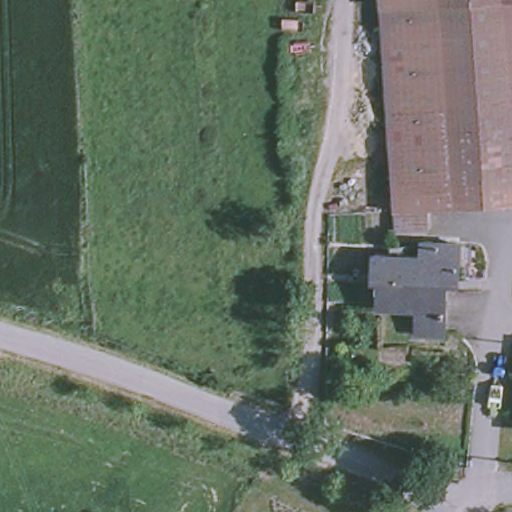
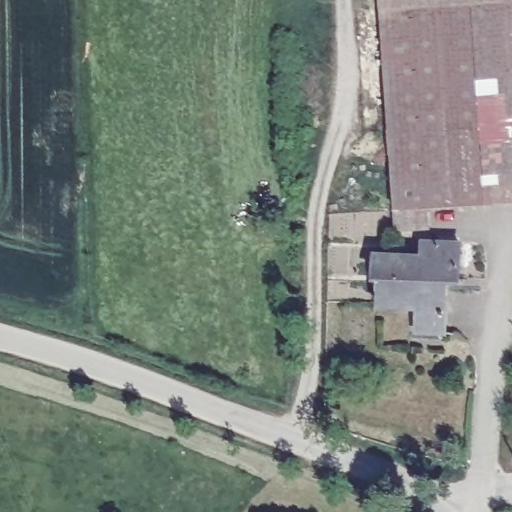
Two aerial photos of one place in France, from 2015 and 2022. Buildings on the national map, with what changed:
unchanged [(381,0),(462,0),(381,6),(381,0)]
unchanged [(396,209),(381,6),(462,0),(512,0),(512,201),(428,207),(430,228),(397,230),(396,209)]
unchanged [(423,254),(424,241),(460,242),(458,280),(446,280),(444,331),(417,330),(418,306),(380,305),(381,277),(375,277),(376,253),(423,254)]

